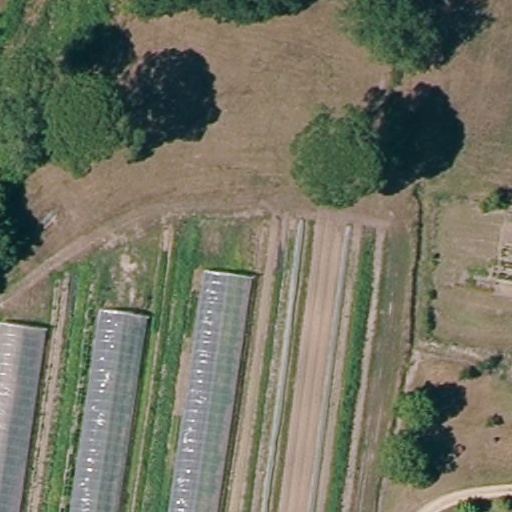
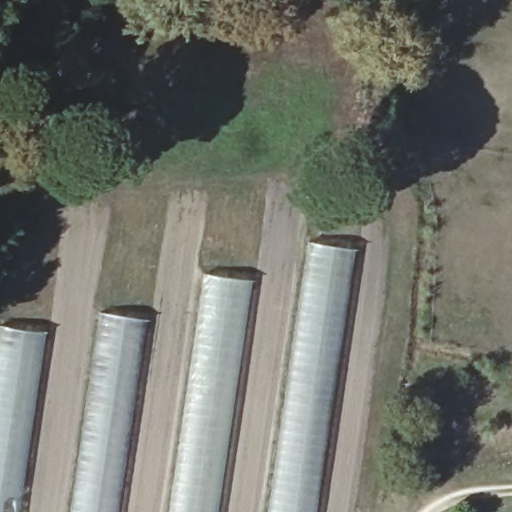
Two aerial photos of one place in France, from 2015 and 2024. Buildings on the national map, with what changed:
new [(354,247),(316,512),(270,512),(309,240),(354,247)]
unchanged [(216,512),(169,512),(204,273),(251,280),(216,512)]
unchanged [(118,512),(71,512),(101,312),(146,318),(118,512)]
unchanged [(19,512),(0,512),(0,327),(0,324),(45,331),(19,512)]

